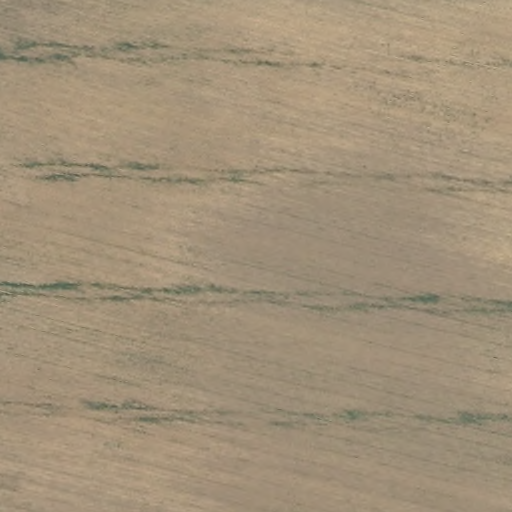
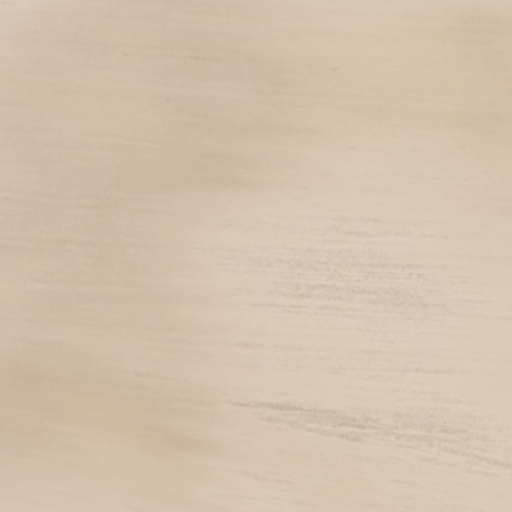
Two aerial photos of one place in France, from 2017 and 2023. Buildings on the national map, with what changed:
[]

